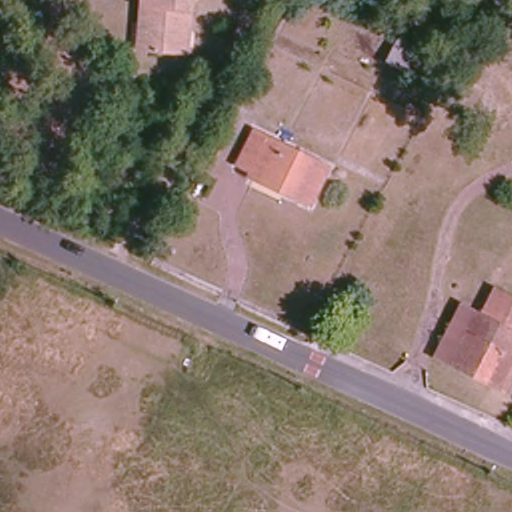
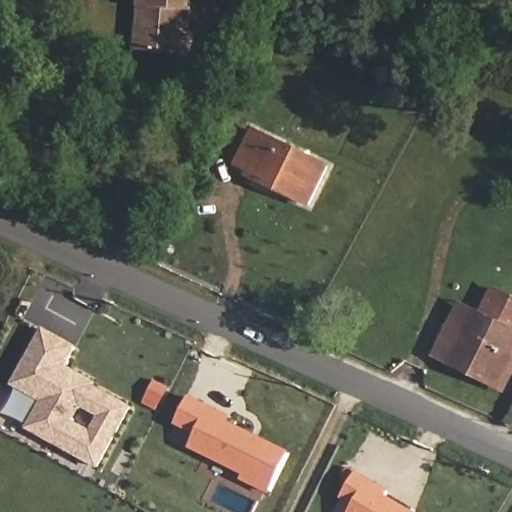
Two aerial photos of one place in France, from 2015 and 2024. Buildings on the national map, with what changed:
unchanged [(174,55),(143,49),(134,48),(142,6),(143,0),(192,0),(187,32),(183,57),(174,55)]
unchanged [(408,36),(430,45),(417,74),(395,64),(408,36)]
unchanged [(328,166),(308,204),(252,177),(254,171),(236,163),(252,129),(328,166)]
unchanged [(469,373),(445,360),(433,355),(453,320),(463,325),(473,306),(481,310),(492,288),(501,293),(512,299),(512,355),(512,380),(506,393),(495,387),(469,373)]
new [(41,402),(12,385),(42,330),(74,348),(63,368),(92,384),(90,388),(128,409),(95,467),(64,450),(26,429),(30,422),(41,402)]
new [(189,398),(230,419),(228,423),(290,454),(271,492),(243,477),(244,474),(191,447),(197,433),(177,423),(189,398)]
new [(354,475),(375,487),(378,482),(391,490),(387,495),(416,512),(350,512),(354,505),(341,498),(354,475)]

